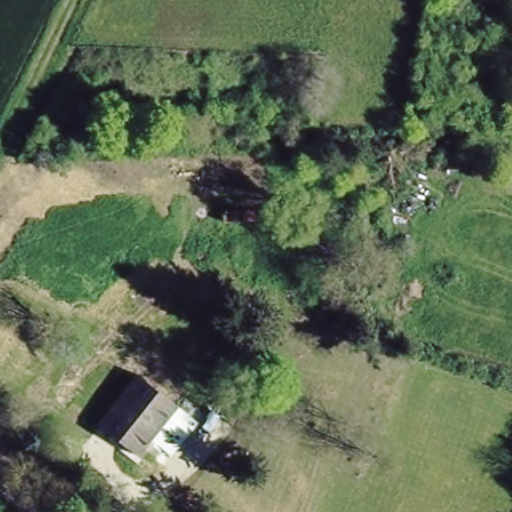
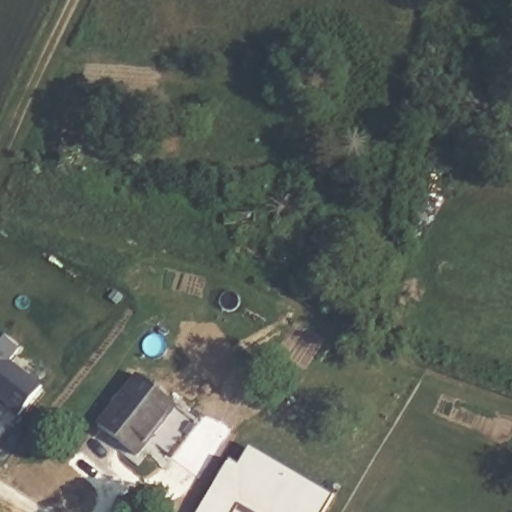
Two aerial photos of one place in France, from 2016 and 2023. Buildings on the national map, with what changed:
new [(7,408),(9,406),(0,398),(0,333),(21,350),(11,362),(41,385),(18,417),(7,408)]
unchanged [(175,402),(136,453),(97,423),(136,372),(175,402)]
new [(257,512),(213,484),(224,463),(231,468),(248,445),(332,497),(323,512),(257,512)]

